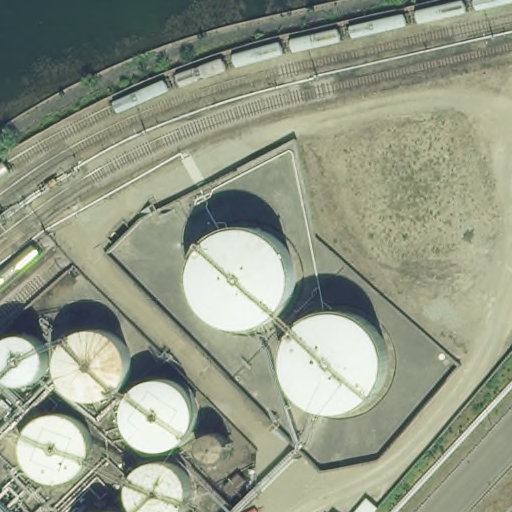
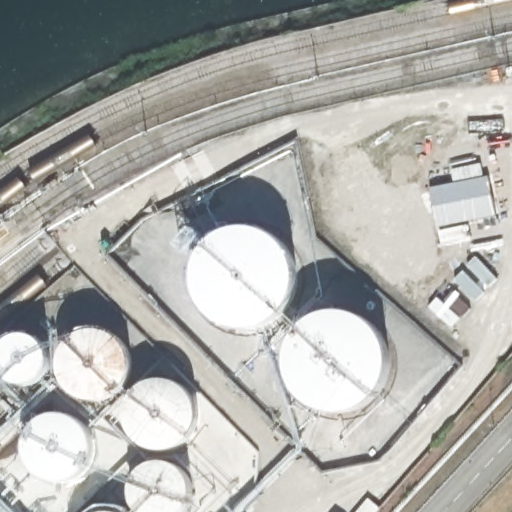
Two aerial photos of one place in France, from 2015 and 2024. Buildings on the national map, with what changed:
new [(454,181),(451,168),(482,161),(484,175),(489,175),(497,215),(469,222),(473,239),(442,245),(429,187),(454,181)]
new [(477,256),(498,278),(474,300),(454,280),(477,256)]

